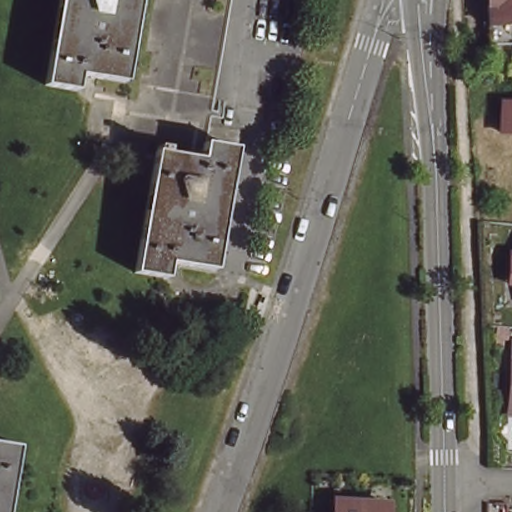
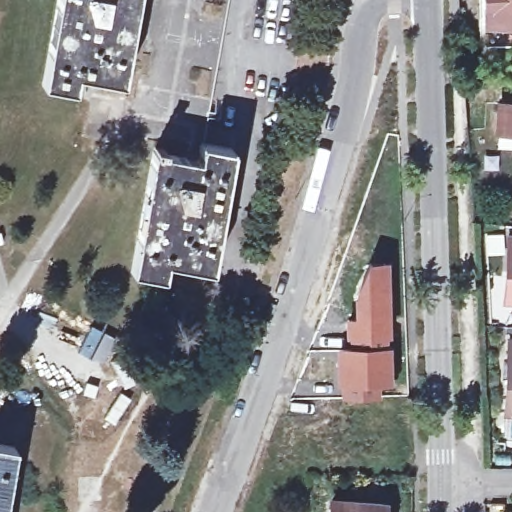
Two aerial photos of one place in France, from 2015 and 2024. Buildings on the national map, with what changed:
unchanged [(70,89),(40,84),(55,0),(134,0),(119,81),(73,74),(70,89)]
unchanged [(484,0),(512,0),(512,23),(484,25),(484,0)]
unchanged [(484,25),(512,23),(512,44),(485,46),(484,25)]
unchanged [(512,132),(496,131),(499,101),(512,102),(512,132)]
unchanged [(212,273),(167,265),(165,282),(132,276),(155,156),(156,156),(157,152),(165,154),(165,157),(200,164),(202,148),(235,153),(212,273)]
new [(390,262),(392,285),(383,286),(384,304),(391,304),(393,330),(384,330),(384,333),(380,333),(382,348),(385,348),(393,349),(394,388),(373,388),(373,397),(344,397),(343,382),(339,382),(337,350),(352,350),(351,334),(349,334),(347,320),(356,319),(356,294),(368,265),(370,262),(390,262)]
unchanged [(505,372),(507,354),(512,354),(512,426),(502,426),(505,372)]
unchanged [(5,512),(0,512),(0,446),(15,449),(5,512)]
unchanged [(334,499),(382,503),(382,512),(333,512),(334,499)]

